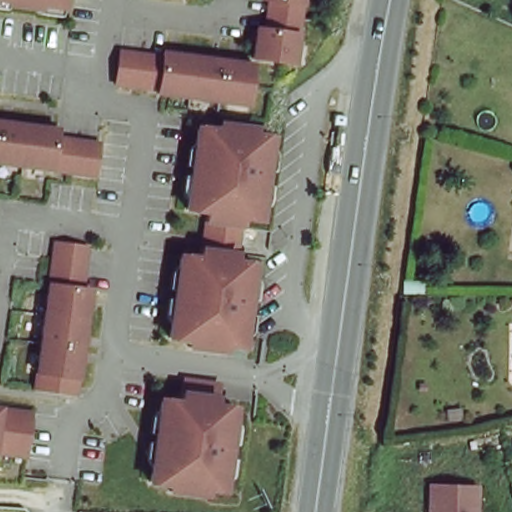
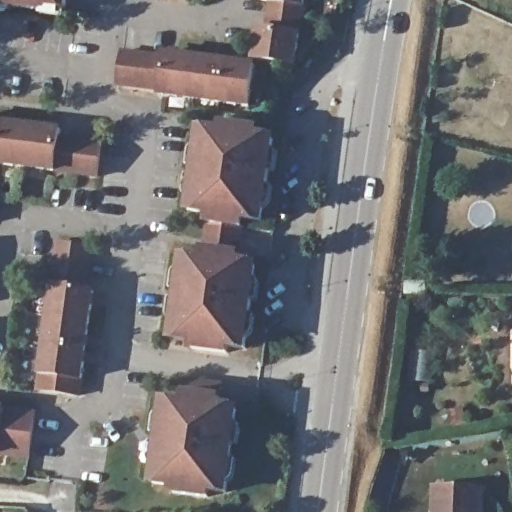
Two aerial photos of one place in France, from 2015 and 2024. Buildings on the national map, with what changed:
unchanged [(70,7),(4,0),(71,0),(70,7)]
unchanged [(301,62),(254,52),(258,22),(267,24),(270,0),(309,0),(301,62)]
unchanged [(165,48),(257,59),(254,101),(158,89),(118,82),(126,46),(165,48)]
unchanged [(60,132),(103,137),(98,172),(0,161),(0,115),(59,122),(60,132)]
unchanged [(259,122),(259,131),(279,134),(269,224),(246,221),(241,254),(261,257),(248,349),(176,337),(188,253),(202,254),(208,215),(193,211),(205,123),(221,125),(223,117),(259,122)]
unchanged [(91,244),(88,288),(96,289),(85,389),(44,387),(55,282),(60,242),(91,244)]
unchanged [(222,381),(222,400),(242,402),(233,496),(156,484),(167,397),(183,397),(191,376),(222,381)]
unchanged [(32,409),(29,455),(2,450),(0,450),(0,404),(5,405),(32,409)]
unchanged [(482,486),(480,512),(435,512),(437,483),(482,486)]

